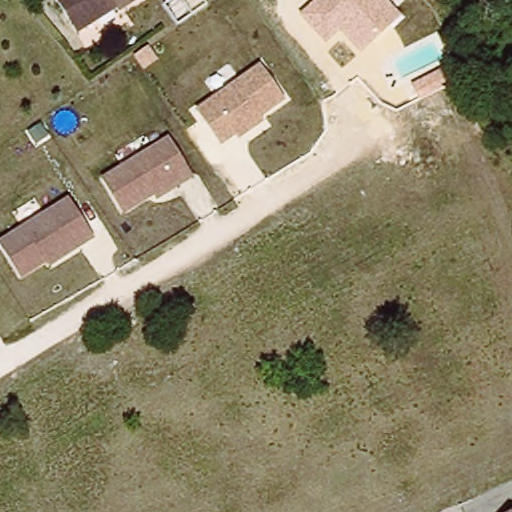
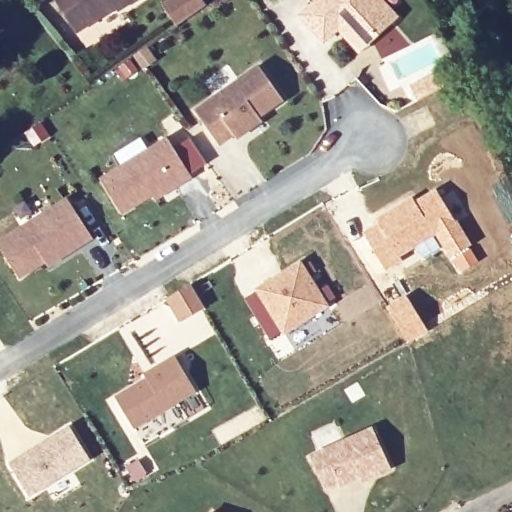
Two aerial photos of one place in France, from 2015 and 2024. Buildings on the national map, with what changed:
unchanged [(70,18),(59,0),(149,0),(122,15),(120,11),(90,28),(80,35),(70,18)]
new [(169,0),(203,0),(206,5),(176,25),(163,4),(169,0)]
unchanged [(401,19),(360,55),(339,33),(325,45),(297,16),(316,0),(383,0),(401,19)]
unchanged [(194,110),(260,64),(284,100),(261,116),(265,122),(241,141),(235,135),(220,146),(194,110)]
new [(427,73),(435,86),(415,98),(407,85),(427,73)]
unchanged [(157,200),(154,195),(123,214),(100,178),(167,137),(193,177),(157,200)]
new [(471,216),(457,225),(471,245),(454,255),(451,252),(447,255),(442,246),(421,261),(412,247),(399,255),(401,260),(387,269),(367,233),(380,225),(378,221),(415,199),(417,203),(437,192),(442,198),(455,190),(471,216)]
unchanged [(45,262),(20,277),(0,247),(0,239),(68,196),(95,239),(49,268),(45,262)]
new [(339,324),(295,350),(258,289),(301,263),(339,324)]
new [(144,374),(156,367),(174,356),(194,390),(132,427),(115,398),(146,379),(144,374)]
new [(69,422),(92,458),(31,498),(8,463),(69,422)]
new [(361,476),(341,485),(339,480),(325,486),(312,456),(374,428),(391,468),(374,476),(362,481),(361,476)]
new [(213,512),(210,512),(211,510),(213,512)]

